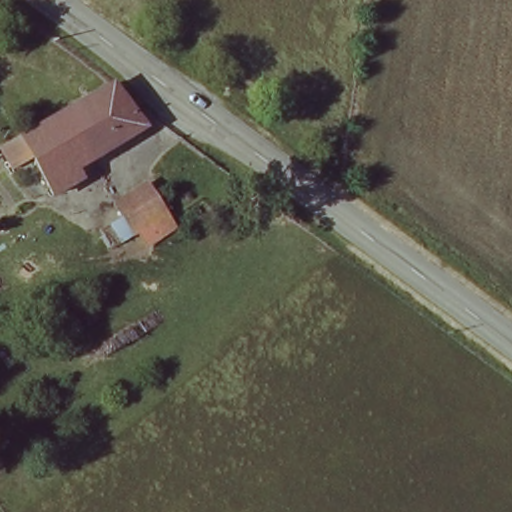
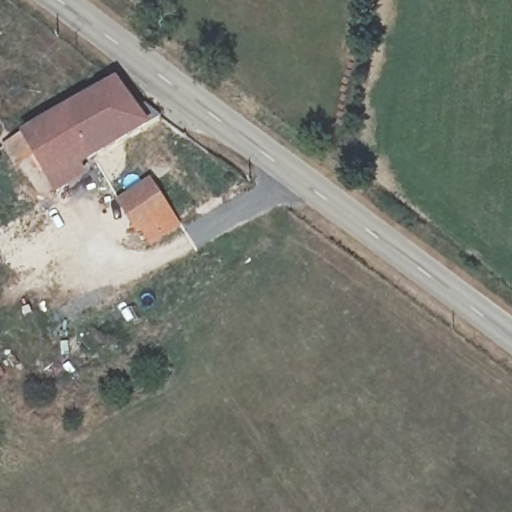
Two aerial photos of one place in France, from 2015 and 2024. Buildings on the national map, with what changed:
unchanged [(158,123),(61,182),(68,192),(55,200),(32,160),(13,170),(2,152),(113,89),(133,116),(142,111),(158,123)]
unchanged [(119,244),(107,226),(130,212),(122,199),(153,180),(166,199),(178,223),(151,238),(143,224),(140,226),(138,232),(119,244)]

